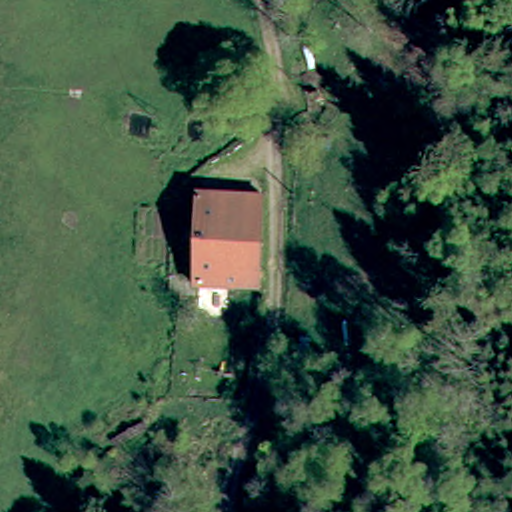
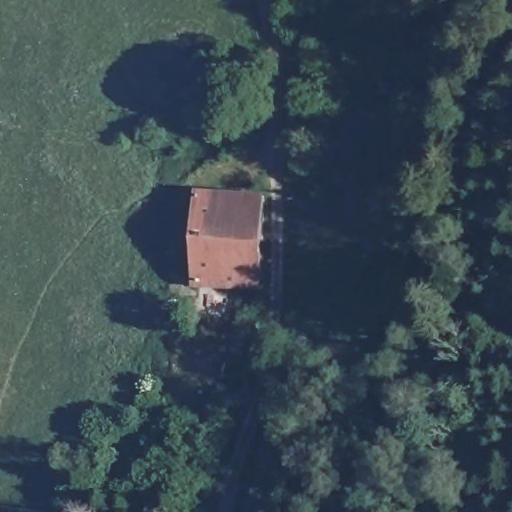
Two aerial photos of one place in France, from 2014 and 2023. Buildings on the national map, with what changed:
unchanged [(255,279),(196,275),(205,185),(263,190),(255,279)]

